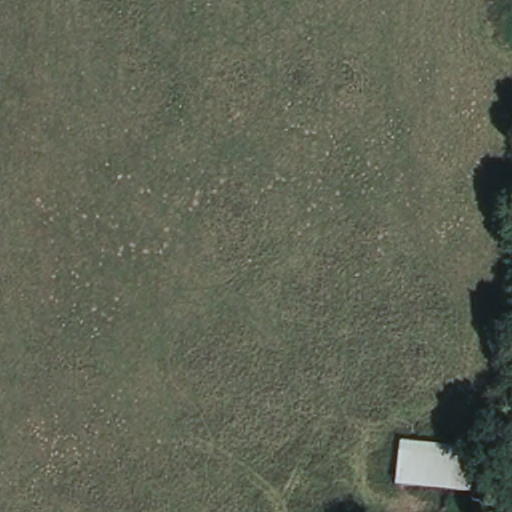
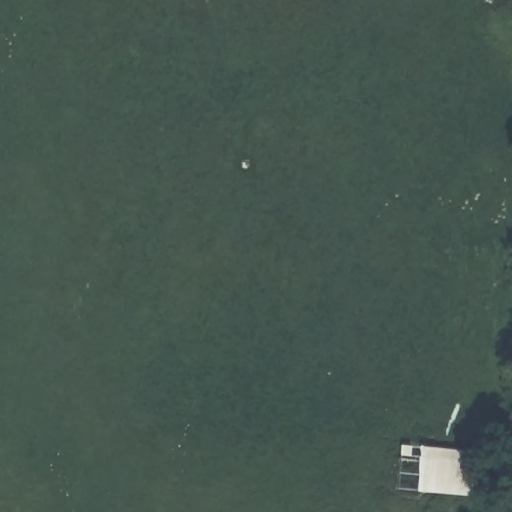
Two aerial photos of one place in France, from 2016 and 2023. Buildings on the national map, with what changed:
unchanged [(474,498),(391,487),(398,443),(482,456),(474,498)]

